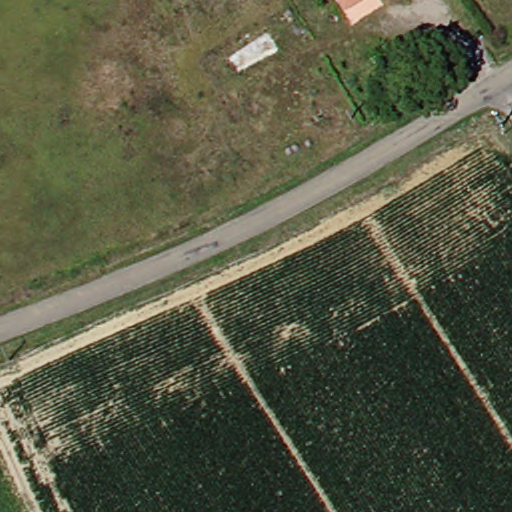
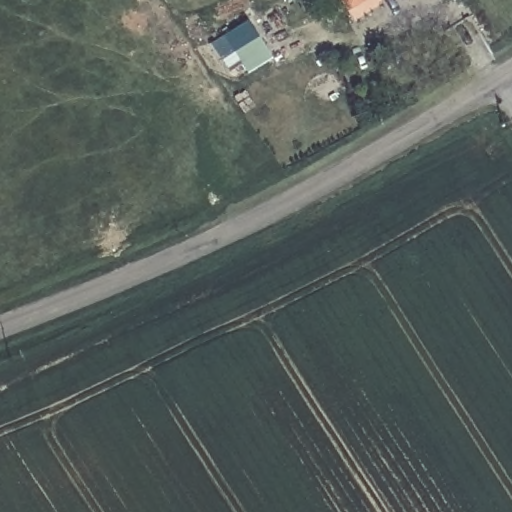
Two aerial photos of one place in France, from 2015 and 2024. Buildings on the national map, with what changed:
unchanged [(348,0),(358,0),(351,4),(348,0)]
new [(243,22),(246,27),(249,25),(269,60),(245,74),(239,65),(226,73),(208,43),(243,22)]

